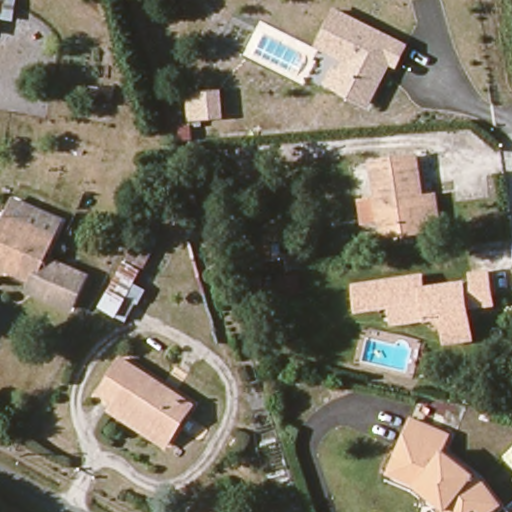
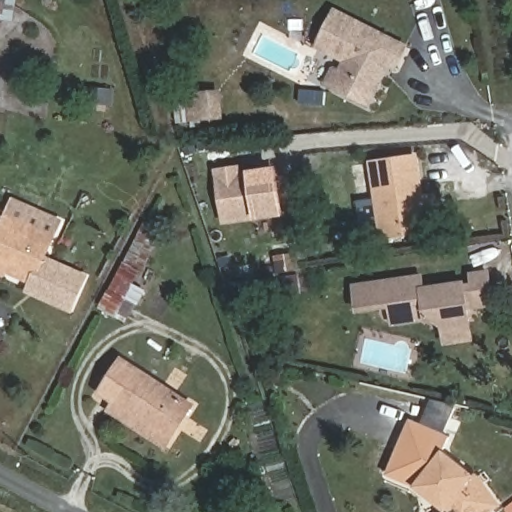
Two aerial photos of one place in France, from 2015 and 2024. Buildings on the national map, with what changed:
unchanged [(0,7),(1,7),(0,18),(0,7)]
unchanged [(334,71),(343,75),(342,71),(345,63),(315,51),(330,15),(402,45),(394,64),(388,62),(381,77),(369,106),(336,92),(327,87),(334,71)]
unchanged [(226,120),(187,125),(184,92),(222,88),(226,120)]
unchanged [(439,221),(426,222),(428,230),(384,236),(375,177),(373,162),(417,156),(421,186),(423,197),(435,196),(439,221)]
new [(238,167),(239,174),(273,169),(279,212),(224,221),(217,170),(238,167)]
unchanged [(0,235),(5,237),(9,227),(15,211),(60,228),(54,244),(45,271),(73,281),(74,276),(88,281),(76,314),(41,301),(44,292),(9,280),(7,285),(0,282),(0,235)]
unchanged [(99,307),(131,237),(156,250),(141,277),(151,282),(131,322),(99,307)]
unchanged [(448,343),(446,328),(434,320),(395,326),(393,308),(360,313),(357,290),(423,280),(425,291),(465,285),(465,287),(474,286),(473,278),(489,277),(493,306),(468,310),(470,325),(472,340),(448,343)]
unchanged [(110,411),(114,402),(101,393),(123,357),(199,402),(168,450),(110,411)]
unchanged [(498,506),(490,512),(445,512),(414,486),(385,474),(408,421),(449,438),(443,451),(477,480),(498,506)]
unchanged [(506,512),(512,507),(512,512),(506,512)]

